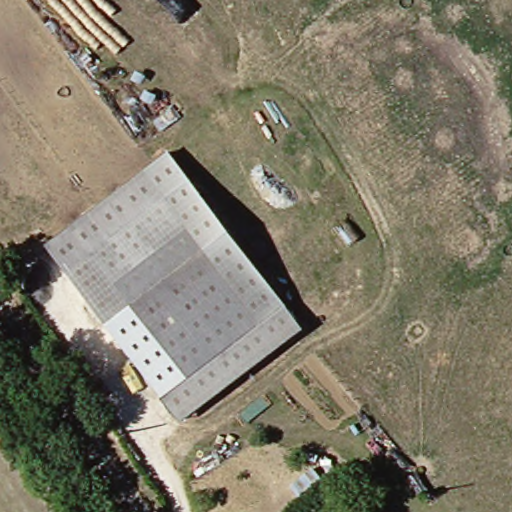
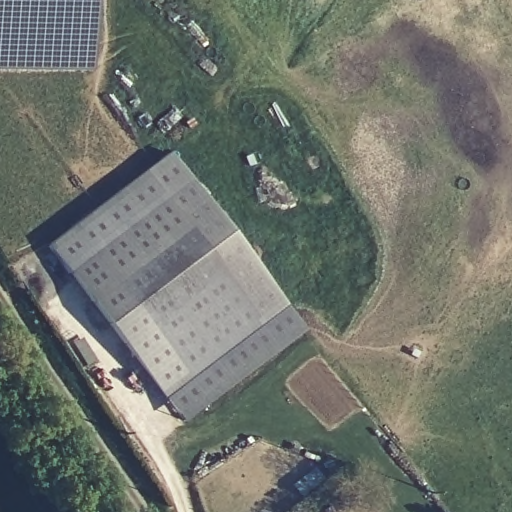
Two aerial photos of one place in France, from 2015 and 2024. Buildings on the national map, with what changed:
new [(90,70),(0,70),(0,0),(94,0),(90,70)]
unchanged [(295,331),(175,422),(41,241),(161,150),(295,331)]

